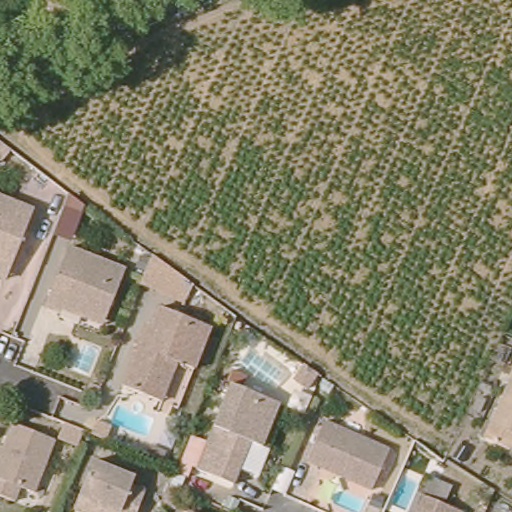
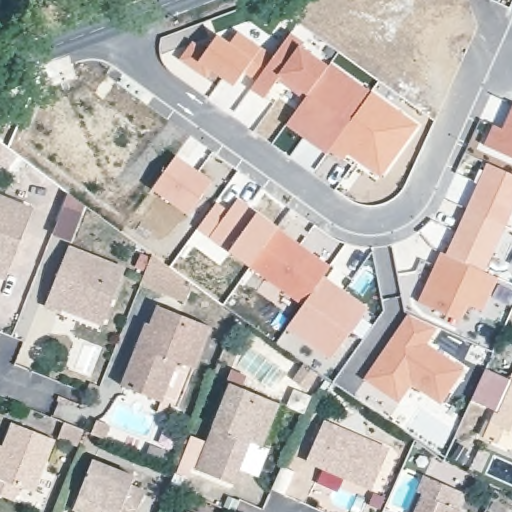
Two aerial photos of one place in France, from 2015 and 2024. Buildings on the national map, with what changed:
new [(191,40),(206,49),(216,34),(229,41),(237,30),(273,55),(253,81),(243,75),(234,88),(211,73),(208,79),(178,60),(191,40)]
new [(253,81),(273,55),(290,33),(329,62),(303,99),(276,82),(264,102),(246,91),(253,81)]
new [(286,125),(303,99),(329,62),(371,92),(418,125),(380,177),(347,153),(341,160),(328,150),(326,154),(286,125)]
new [(502,128),(512,105),(512,158),(483,145),(493,124),(502,128)]
new [(177,153),(195,166),(213,180),(188,215),(151,189),(177,153)]
new [(476,181),(486,161),(512,174),(512,219),(507,231),(488,272),(444,254),(464,207),(476,181)]
unchanged [(0,269),(0,190),(38,205),(17,258),(11,273),(0,269)]
new [(68,193),(86,205),(70,242),(51,234),(68,193)]
new [(217,200),(228,209),(238,196),(256,210),(228,251),(196,229),(217,200)]
new [(256,210),(332,265),(325,275),(301,305),(261,277),(229,252),(228,251),(256,210)]
unchanged [(63,308),(48,302),(69,246),(123,267),(104,316),(101,322),(63,308)]
new [(439,252),(444,254),(488,272),(499,277),(482,313),(469,307),(460,323),(416,302),(439,252)]
new [(150,255),(190,284),(182,302),(139,284),(150,255)]
new [(301,305),(325,275),(369,307),(362,318),(354,331),(330,361),(313,350),(284,329),(301,305)]
unchanged [(173,362),(156,402),(125,390),(151,327),(155,329),(162,312),(211,331),(195,372),(173,362)]
new [(408,313),(437,328),(429,343),(465,367),(441,405),(411,387),(399,405),(365,382),(361,379),(408,313)]
unchanged [(314,374),(303,389),(291,380),(301,365),(314,374)]
new [(472,400),(486,369),(512,381),(512,387),(501,413),(472,400)]
unchanged [(512,387),(512,458),(486,446),(512,387)]
unchanged [(271,407),(255,449),(244,445),(233,474),(228,489),(191,475),(225,389),(271,407)]
unchanged [(0,494),(0,443),(3,444),(11,422),(53,438),(33,491),(18,484),(11,498),(0,494)]
unchanged [(317,444),(326,422),(389,450),(372,490),(324,468),(309,461),(317,444)]
unchanged [(138,476),(133,484),(146,489),(138,512),(87,512),(78,508),(83,495),(97,459),(138,476)]
unchanged [(463,512),(419,512),(427,494),(463,512)]
unchanged [(197,512),(184,512),(186,507),(197,512)]

